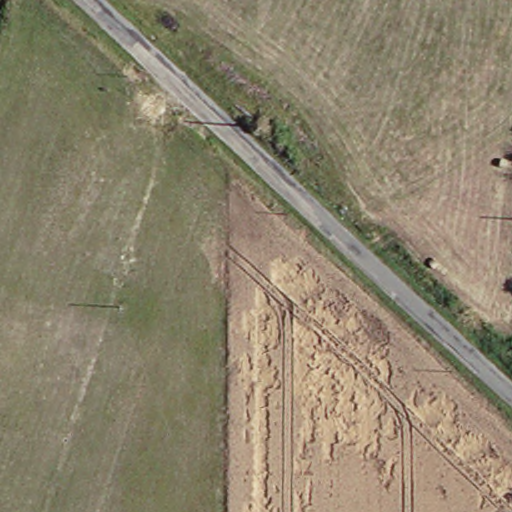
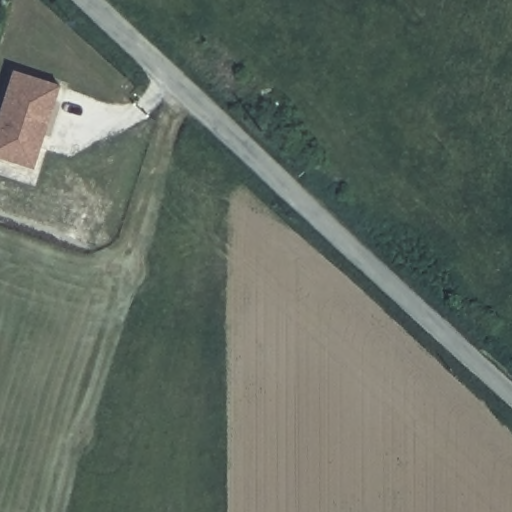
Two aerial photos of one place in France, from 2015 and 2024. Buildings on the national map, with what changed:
new [(0,114),(14,69),(61,84),(34,169),(0,158),(0,114)]

